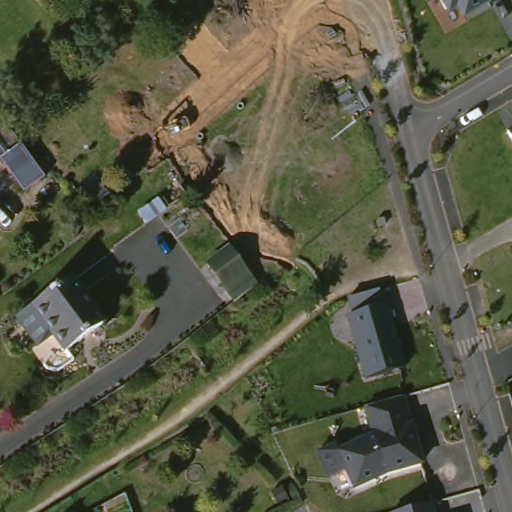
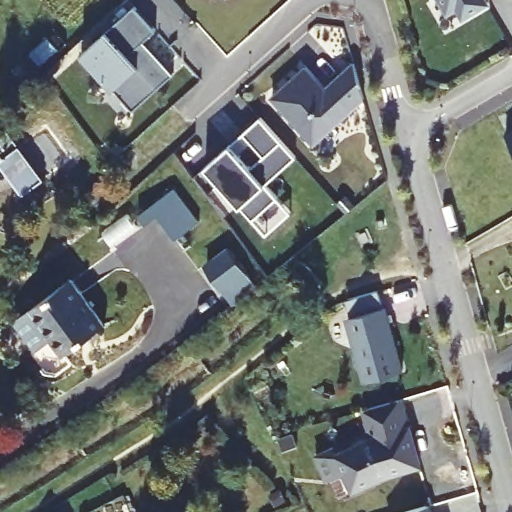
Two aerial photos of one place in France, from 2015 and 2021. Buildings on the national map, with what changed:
unchanged [(488,2),(462,18),(455,7),(444,14),(433,0),(487,0),(488,2)]
new [(165,78),(133,103),(121,89),(115,93),(79,49),(134,4),(154,29),(142,39),(170,74),(165,78)]
new [(303,70),(325,95),(330,90),(327,87),(352,65),(364,99),(330,129),(328,126),(308,144),(269,100),(303,70)]
new [(267,234),(253,220),(206,167),(231,145),(244,133),(261,117),(297,157),(266,184),(278,197),(292,212),(267,234)]
unchanged [(5,129),(45,179),(25,194),(0,162),(0,133),(5,129)]
unchanged [(512,146),(505,134),(512,130),(512,146)]
unchanged [(233,243),(262,282),(238,301),(208,263),(233,243)]
unchanged [(17,320),(32,308),(72,280),(73,282),(108,326),(68,355),(54,336),(38,348),(17,320)]
unchanged [(344,320),(351,318),(344,301),(376,291),(403,367),(361,380),(344,320)]
unchanged [(403,398),(425,464),(351,492),(341,473),(327,480),(316,454),(341,442),(344,449),(369,439),(364,411),(403,398)]
unchanged [(436,512),(409,512),(433,505),(436,512)]

